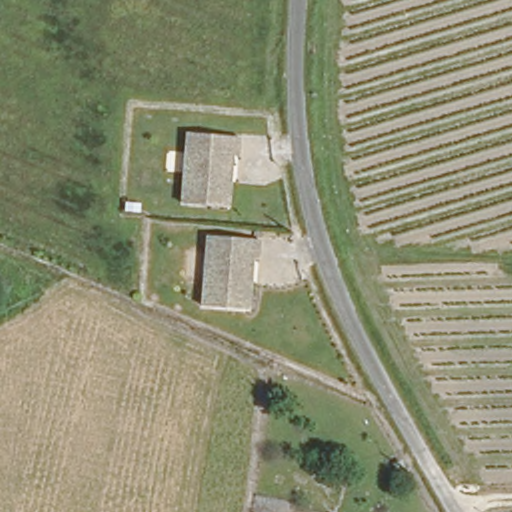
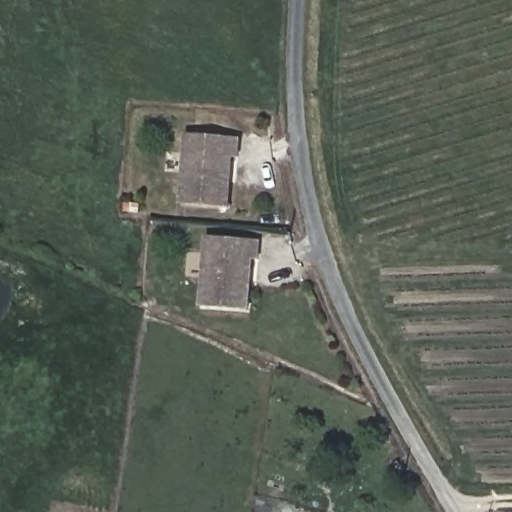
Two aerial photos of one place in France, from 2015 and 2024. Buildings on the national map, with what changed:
unchanged [(238,136),(238,155),(226,155),(225,181),(228,181),(228,206),(182,204),(187,133),(238,136)]
unchanged [(256,240),(255,259),(243,259),(242,285),(246,285),(245,310),(200,307),(204,237),(256,240)]

